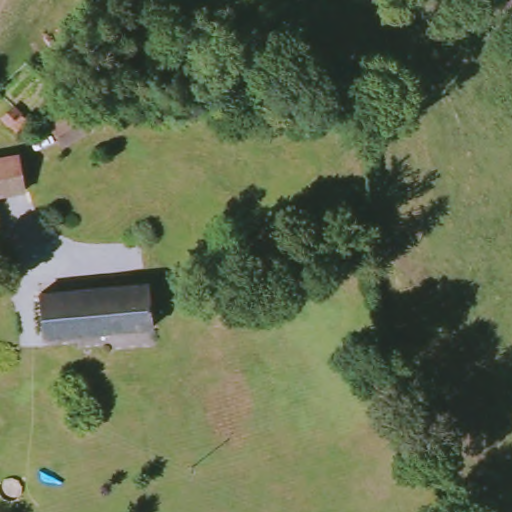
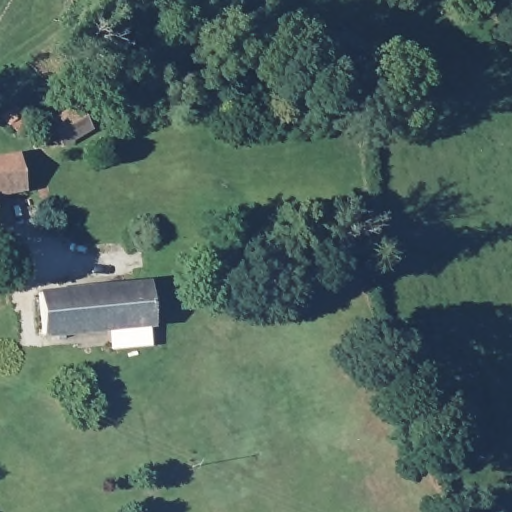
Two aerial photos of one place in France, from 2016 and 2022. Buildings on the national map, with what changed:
unchanged [(75,108),(88,130),(63,145),(50,123),(75,108)]
unchanged [(20,139),(10,128),(3,123),(15,112),(20,118),(31,129),(20,139)]
unchanged [(20,160),(26,195),(0,200),(0,164),(20,160)]
unchanged [(153,280),(157,323),(47,333),(43,290),(153,280)]

